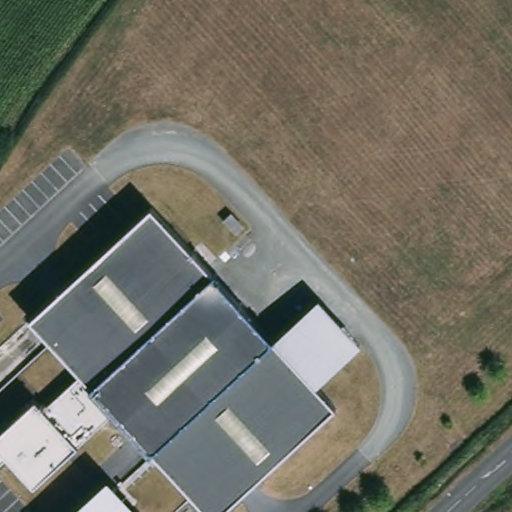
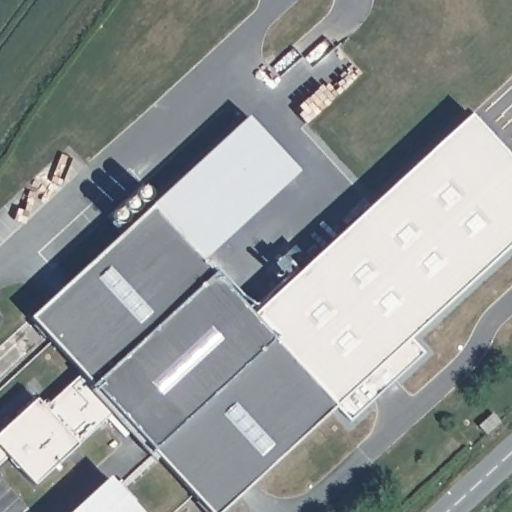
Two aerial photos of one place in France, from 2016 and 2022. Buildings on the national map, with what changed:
new [(470,114),(512,160),(512,242),(408,337),(422,352),(349,421),(337,404),(334,406),(315,384),(361,343),(318,297),(272,338),(251,315),(470,114)]
new [(296,170),(201,260),(151,206),(247,116),(296,170)]
unchanged [(214,273),(272,338),(318,297),(361,343),(315,384),(334,406),(219,512),(209,512),(152,450),(95,387),(30,318),(151,206),(214,273)]
demolished [(232,214),(245,228),(237,235),(224,221),(232,214)]
unchanged [(80,444),(36,484),(7,454),(0,462),(0,431),(39,394),(44,401),(78,374),(116,415),(80,444)]
new [(142,512),(71,512),(109,476),(142,512)]

